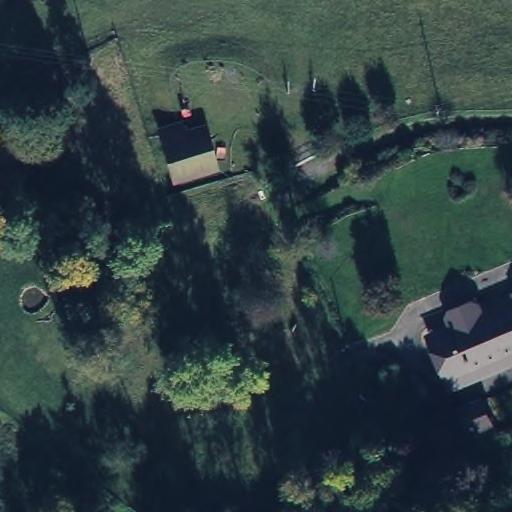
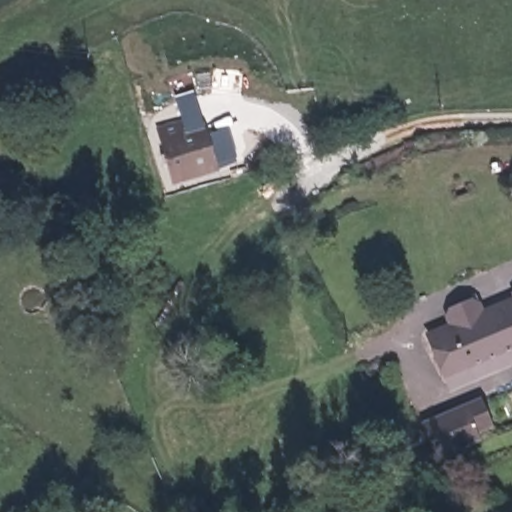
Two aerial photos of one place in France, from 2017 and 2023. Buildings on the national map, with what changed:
unchanged [(187,127),(189,141),(210,136),(216,173),(170,181),(162,132),(187,127)]
unchanged [(449,377),(434,336),(512,306),(512,362),(452,385),(449,377)]
unchanged [(490,426),(474,433),(477,442),(435,458),(422,427),(463,411),(482,404),(490,426)]

